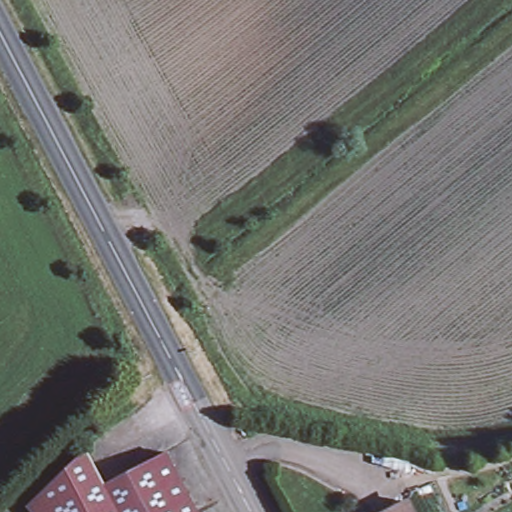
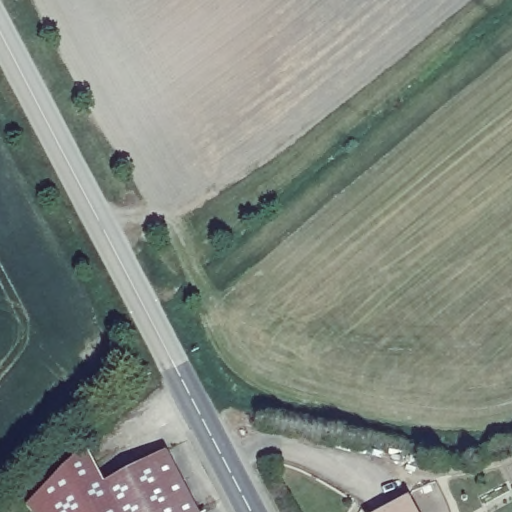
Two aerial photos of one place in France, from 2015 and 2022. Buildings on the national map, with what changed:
unchanged [(165,451),(197,512),(33,512),(28,506),(27,505),(85,448),(91,459),(104,483),(165,451)]
unchanged [(417,512),(385,512),(410,498),(417,512)]

